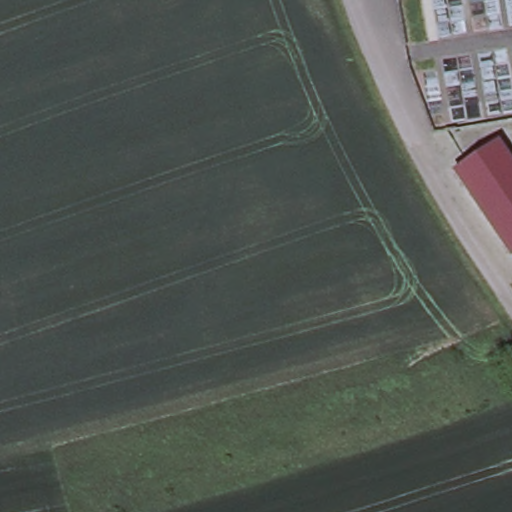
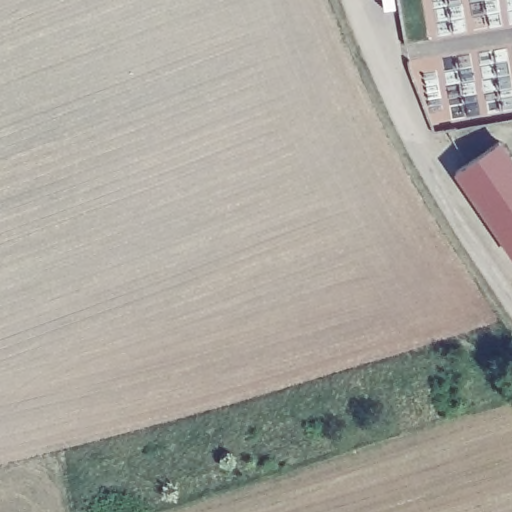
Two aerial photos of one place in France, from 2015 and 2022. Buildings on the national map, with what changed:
unchanged [(512,166),(512,256),(455,171),(497,144),(512,166)]

